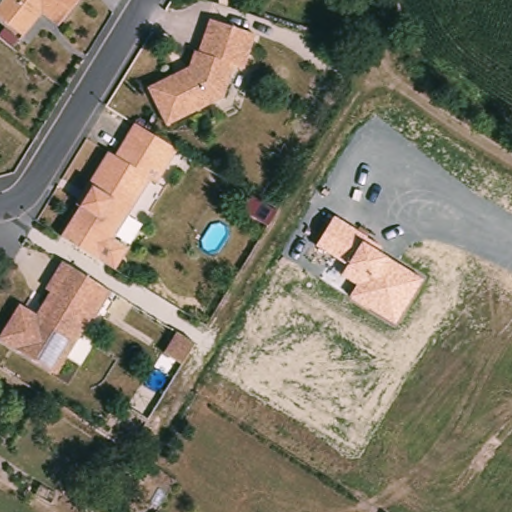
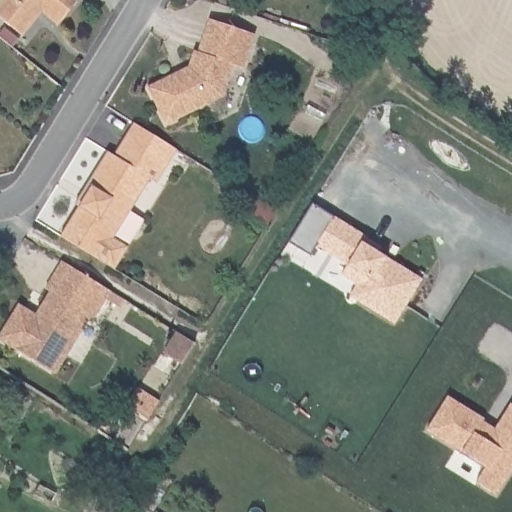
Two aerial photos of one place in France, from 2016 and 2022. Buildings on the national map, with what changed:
unchanged [(0,25),(0,0),(76,0),(53,29),(36,16),(31,23),(17,39),(0,25)]
unchanged [(185,69),(191,53),(194,54),(205,21),(251,36),(240,70),(230,67),(220,99),(163,127),(144,90),(171,76),(185,69)]
unchanged [(168,151),(148,185),(142,181),(106,240),(121,250),(107,272),(53,239),(71,209),(67,207),(79,187),(99,154),(106,158),(125,125),(139,134),(168,151)]
new [(310,254),(288,242),(311,204),(333,217),(314,247),(310,254)]
unchanged [(381,246),(377,251),(388,258),(424,281),(394,327),(347,298),(355,284),(341,276),(346,267),(314,247),(333,217),(381,246)]
unchanged [(67,269),(105,292),(108,294),(91,322),(87,319),(52,377),(0,344),(0,338),(18,309),(35,319),(49,296),(44,293),(61,265),(67,269)]
new [(485,418),(484,420),(494,426),(510,403),(512,404),(512,467),(496,494),(476,482),(485,466),(461,452),(426,431),(447,395),(485,418)]

